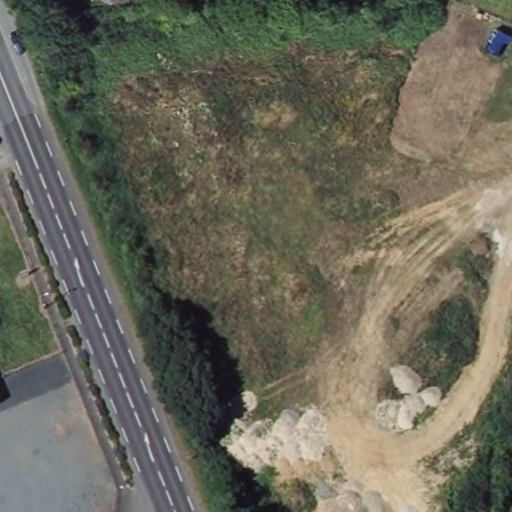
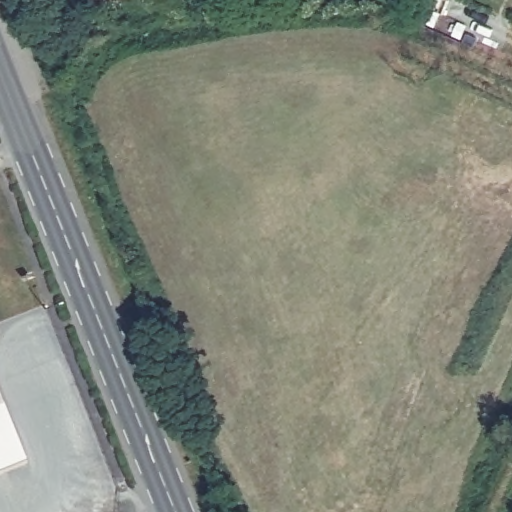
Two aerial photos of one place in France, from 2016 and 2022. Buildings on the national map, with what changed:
demolished [(0,403),(0,401),(1,402),(0,403)]
new [(0,468),(0,406),(21,460),(0,468)]

